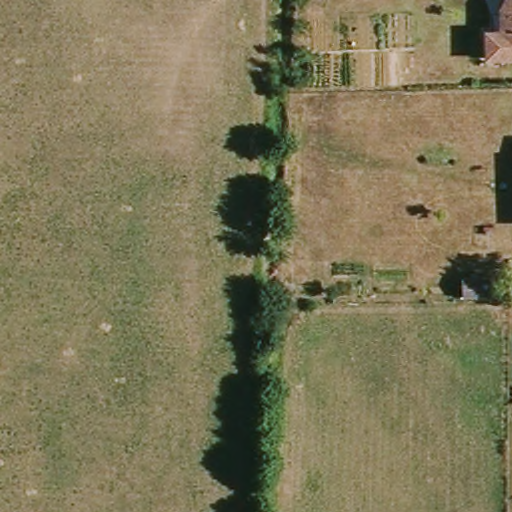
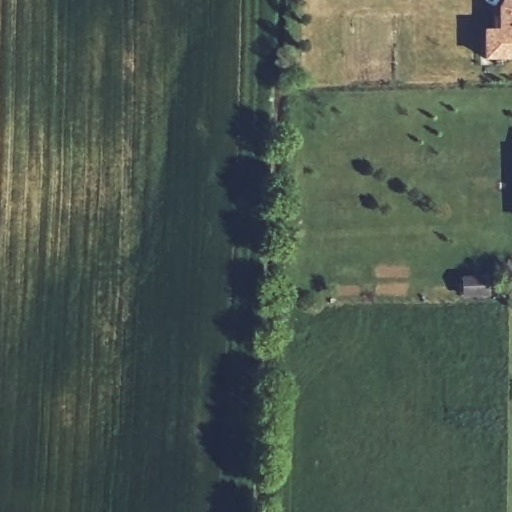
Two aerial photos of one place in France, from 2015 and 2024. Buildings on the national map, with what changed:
unchanged [(504,0),(512,0),(512,59),(485,59),(485,35),(499,35),(499,8),(504,0)]

